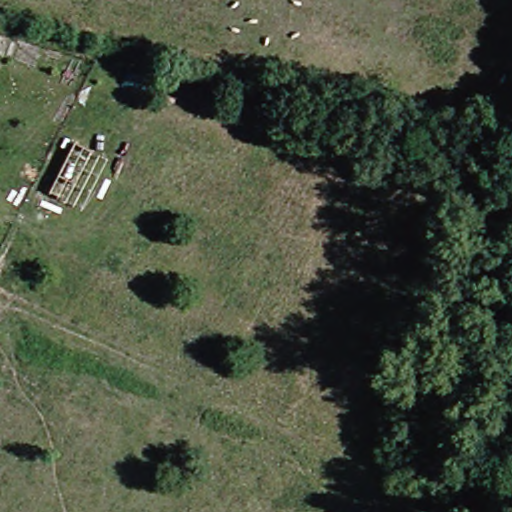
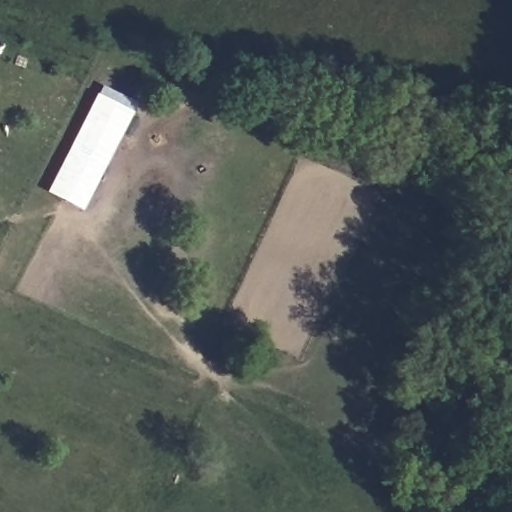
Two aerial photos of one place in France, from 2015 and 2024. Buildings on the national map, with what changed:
new [(45,192),(87,113),(124,131),(81,212),(45,192)]

